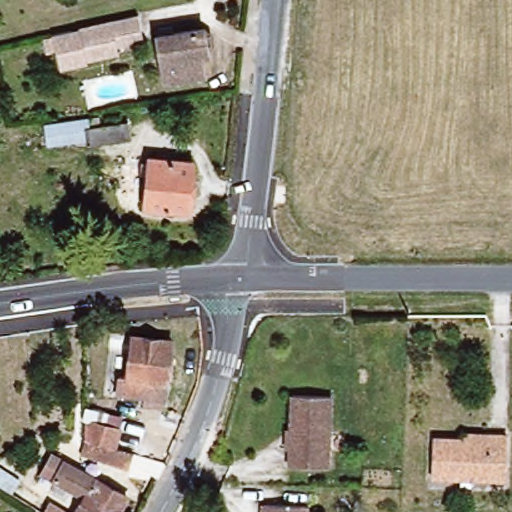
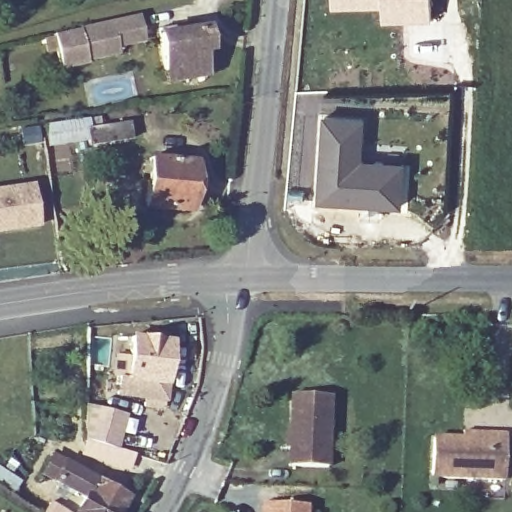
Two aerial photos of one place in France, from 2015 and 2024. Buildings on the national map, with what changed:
new [(413,20),(413,5),(332,7),(332,0),(431,0),(432,20),(413,20)]
unchanged [(86,63),(86,65),(57,71),(52,38),(109,25),(136,19),(141,43),(115,48),(117,56),(86,63)]
unchanged [(162,81),(158,30),(172,30),(171,34),(204,31),(206,37),(207,55),(202,55),(204,79),(162,81)]
new [(366,118),(363,159),(407,161),(403,209),(316,203),(321,116),(366,118)]
unchanged [(63,148),(62,131),(106,124),(108,141),(63,148)]
unchanged [(149,205),(152,156),(194,158),(192,206),(149,205)]
new [(40,226),(0,232),(0,188),(31,183),(40,226)]
unchanged [(166,404),(147,404),(147,395),(120,393),(122,373),(127,374),(132,336),(175,340),(166,404)]
unchanged [(287,463),(287,396),(328,397),(327,463),(287,463)]
unchanged [(95,418),(125,430),(117,451),(135,458),(131,471),(81,453),(95,418)]
unchanged [(432,475),(432,442),(489,445),(490,439),(507,440),(507,479),(432,475)]
unchanged [(82,504),(52,486),(64,466),(124,499),(117,512),(77,512),(82,504)]
unchanged [(303,502),(303,512),(260,512),(262,499),(303,502)]

